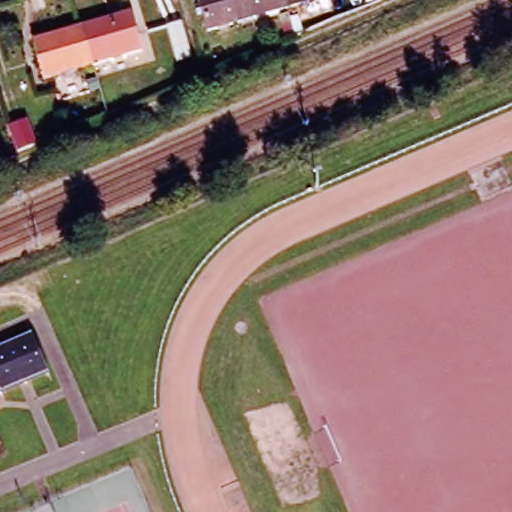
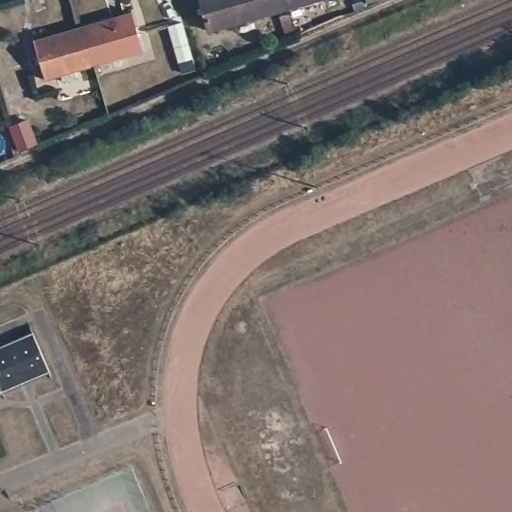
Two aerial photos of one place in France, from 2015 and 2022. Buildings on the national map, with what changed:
unchanged [(199,0),(285,0),(286,2),(207,25),(199,0)]
unchanged [(286,2),(285,0),(295,0),(286,2)]
unchanged [(361,2),(360,0),(368,0),(361,2)]
unchanged [(130,14),(135,29),(130,30),(131,36),(136,35),(140,50),(92,64),(82,28),(130,14)]
unchanged [(34,41),(82,28),(92,64),(45,77),(34,41)]
unchanged [(0,391),(0,347),(31,333),(47,371),(0,391)]

